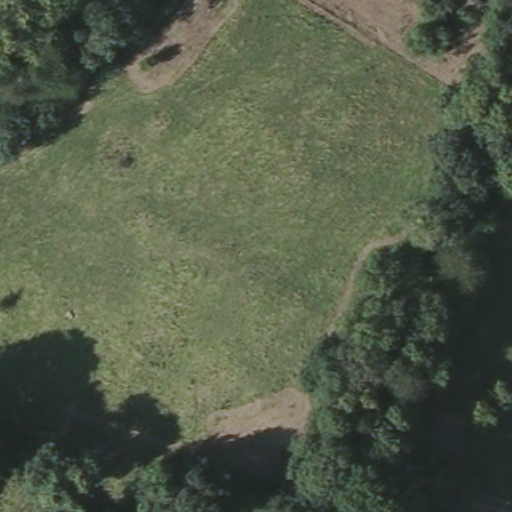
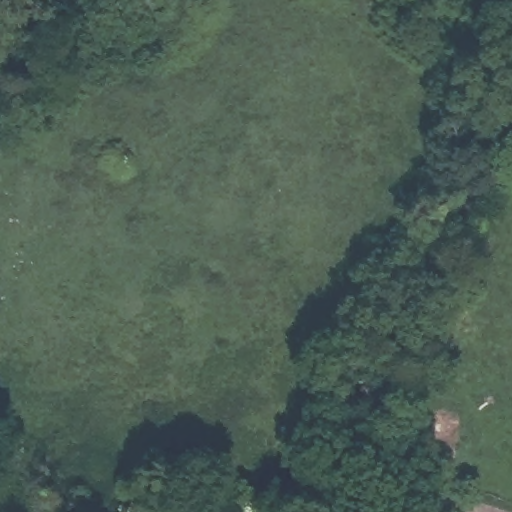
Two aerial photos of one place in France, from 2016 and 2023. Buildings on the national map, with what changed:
unchanged [(421,461),(429,416),(458,419),(452,463),(421,461)]

